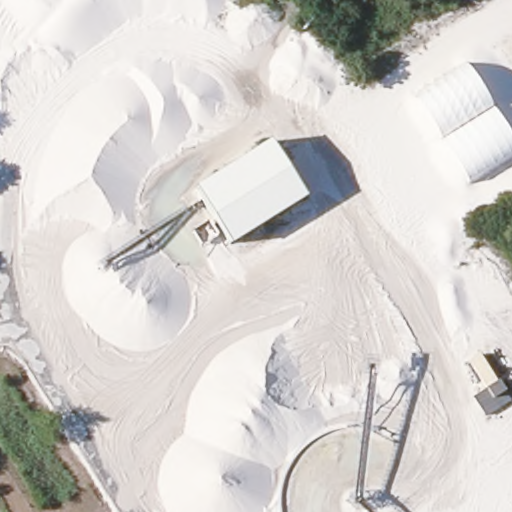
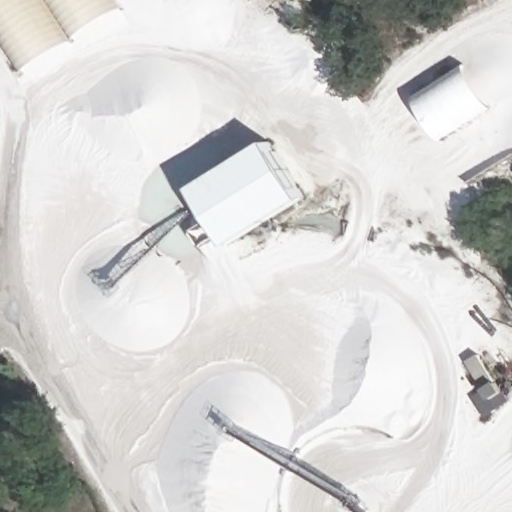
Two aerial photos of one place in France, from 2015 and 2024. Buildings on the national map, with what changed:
new [(131,8),(29,72),(0,26),(0,0),(126,0),(131,8)]
unchanged [(470,183),(416,96),(467,64),(512,139),(512,155),(470,183)]
unchanged [(268,143),(303,199),(230,244),(195,188),(268,143)]
unchanged [(474,397),(497,383),(509,403),(485,417),(474,397)]

